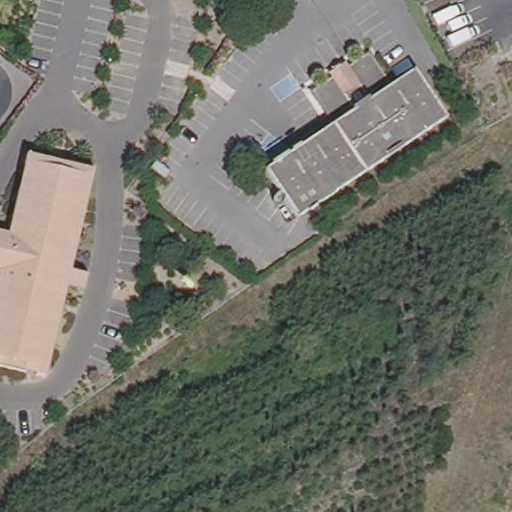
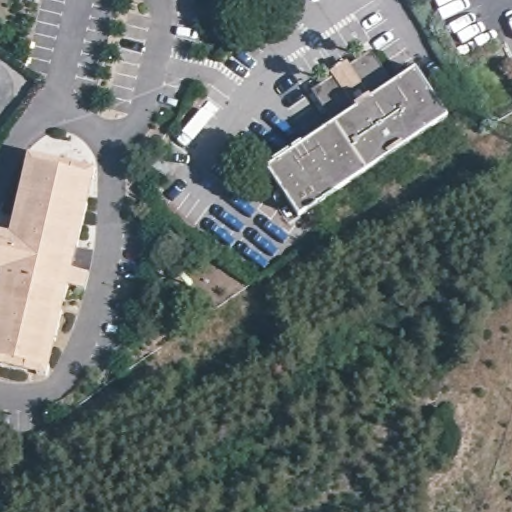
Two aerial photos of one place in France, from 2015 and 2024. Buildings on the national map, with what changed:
unchanged [(364,55),(374,57),(392,84),(414,70),(445,117),(431,127),(349,65),(364,55)]
unchanged [(319,85),(335,75),(332,70),(344,62),(348,67),(431,127),(389,155),(296,217),(265,169),(334,123),(315,95),(319,85)]
unchanged [(83,290),(67,286),(45,376),(0,365),(0,230),(7,232),(27,152),(52,159),(94,169),(90,187),(70,269),(87,273),(83,290)]

